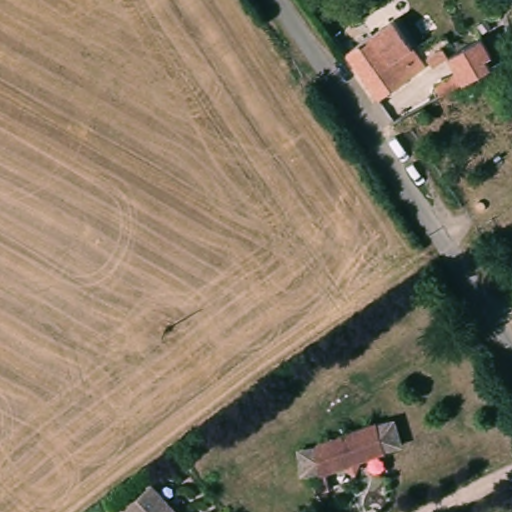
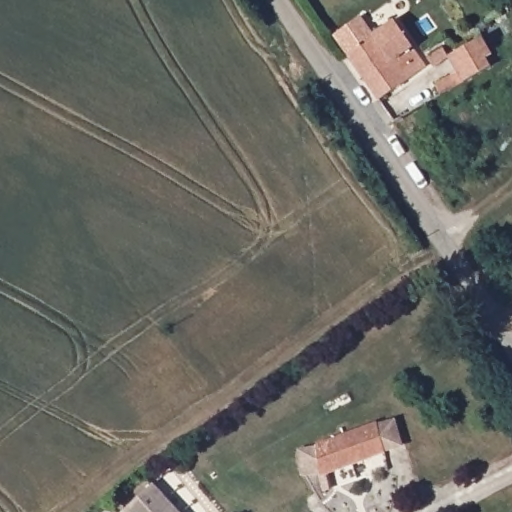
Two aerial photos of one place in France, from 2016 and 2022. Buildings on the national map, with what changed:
unchanged [(347,54),(391,22),(422,67),(377,99),(347,54)]
unchanged [(454,75),(446,58),(480,40),(491,61),(485,64),(488,70),(460,84),(450,90),(440,96),(435,86),(454,75)]
unchanged [(318,454),(317,443),(378,422),(387,453),(326,477),(292,476),(288,454),(318,454)]
unchanged [(152,485),(177,512),(126,512),(126,511),(152,485)]

